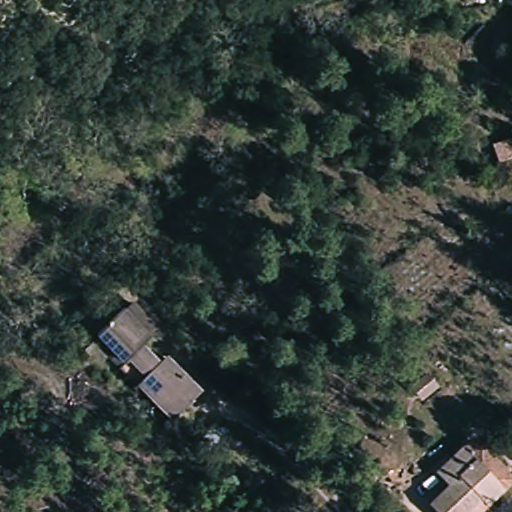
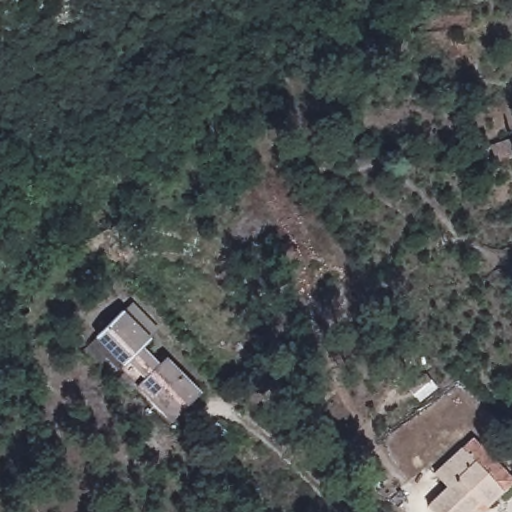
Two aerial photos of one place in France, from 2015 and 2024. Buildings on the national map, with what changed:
unchanged [(512,131),(512,149),(492,154),(488,136),(512,131)]
unchanged [(120,365),(117,369),(90,342),(97,335),(122,311),(132,302),(157,328),(150,335),(168,355),(205,390),(176,415),(142,380),(133,372),(130,376),(120,365)]
unchanged [(447,484),(437,472),(469,446),(476,455),(480,458),(507,490),(490,504),(480,512),(435,512),(427,502),(447,484)]

